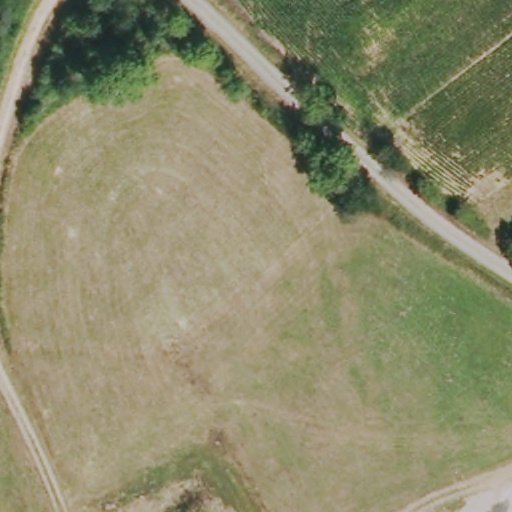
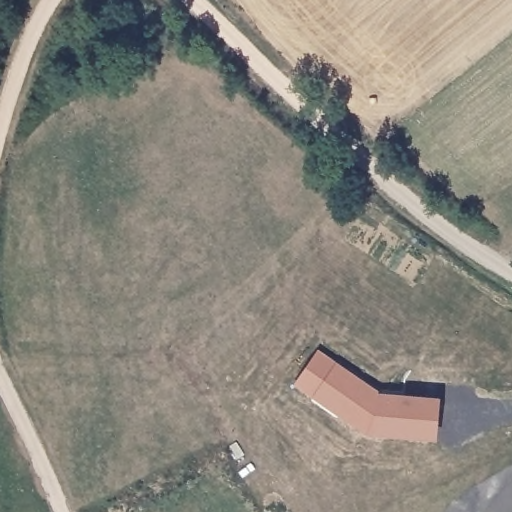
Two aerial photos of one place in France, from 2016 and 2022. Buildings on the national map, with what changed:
new [(369,434),(313,397),(337,362),(382,392),(440,397),(438,440),(369,434)]

